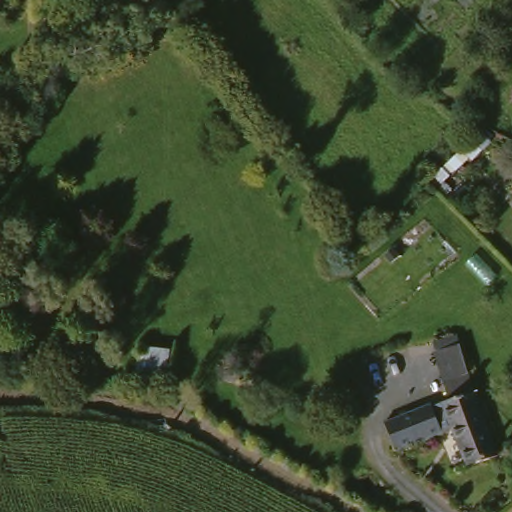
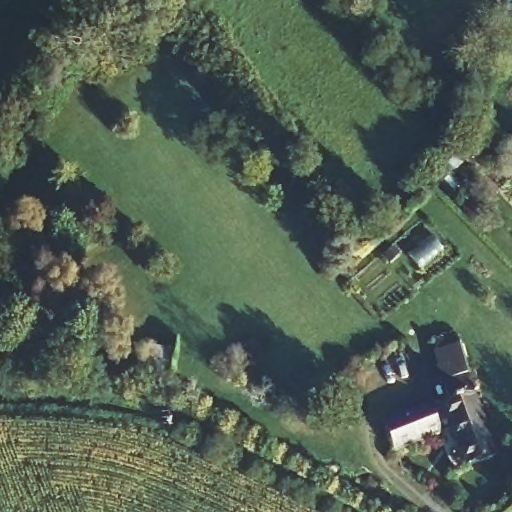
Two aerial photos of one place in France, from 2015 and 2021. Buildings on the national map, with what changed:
unchanged [(48,0),(51,0),(50,1),(48,0)]
unchanged [(446,377),(439,350),(465,343),(472,369),(476,395),(497,459),(469,467),(458,433),(397,449),(395,443),(387,415),(431,404),(432,407),(453,400),(446,377)]
unchanged [(175,353),(171,383),(144,379),(146,348),(175,353)]

